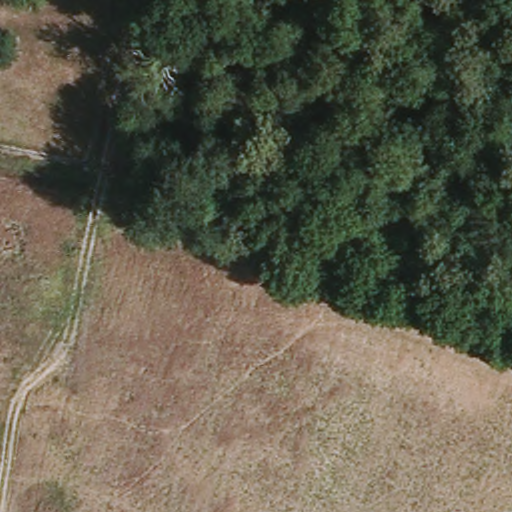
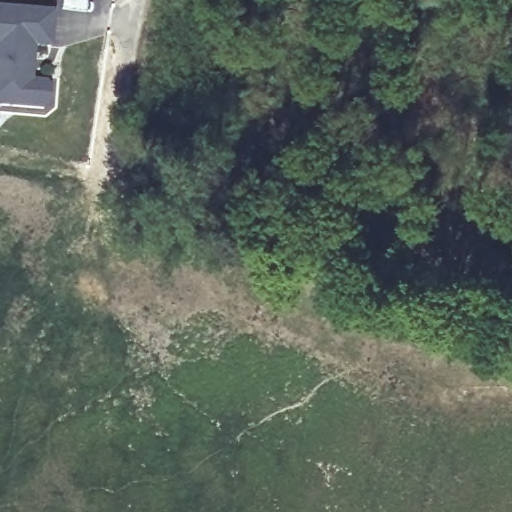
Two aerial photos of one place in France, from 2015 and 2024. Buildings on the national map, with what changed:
new [(53,13),(51,46),(34,44),(32,67),(31,80),(45,81),(50,87),(49,103),(43,108),(0,104),(0,8),(53,13)]

